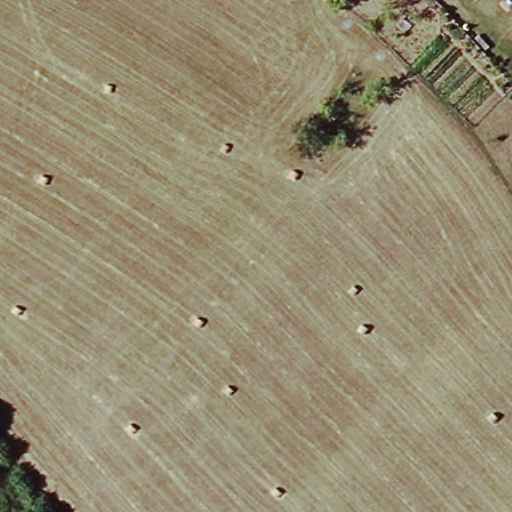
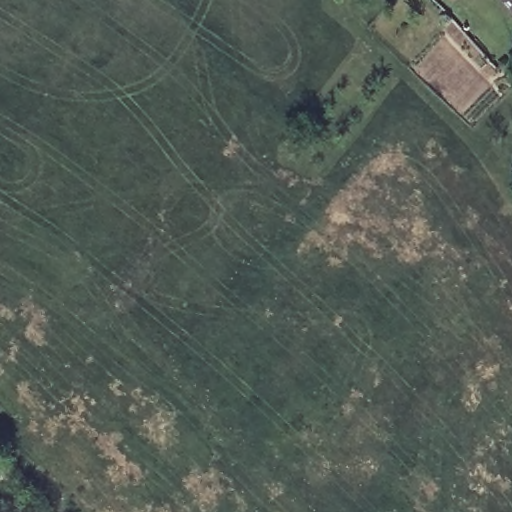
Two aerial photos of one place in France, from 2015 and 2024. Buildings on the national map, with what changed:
unchanged [(500,0),(512,0),(512,13),(500,0)]

